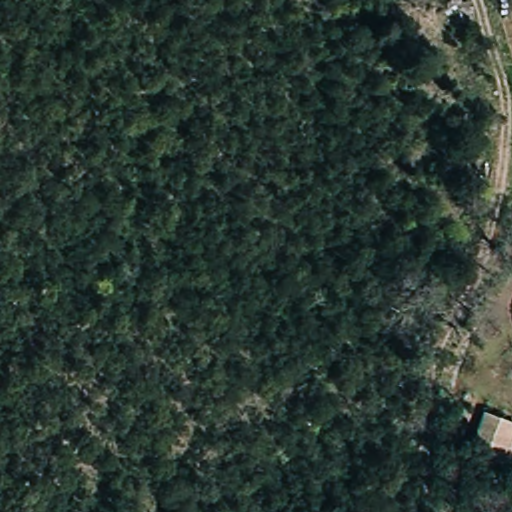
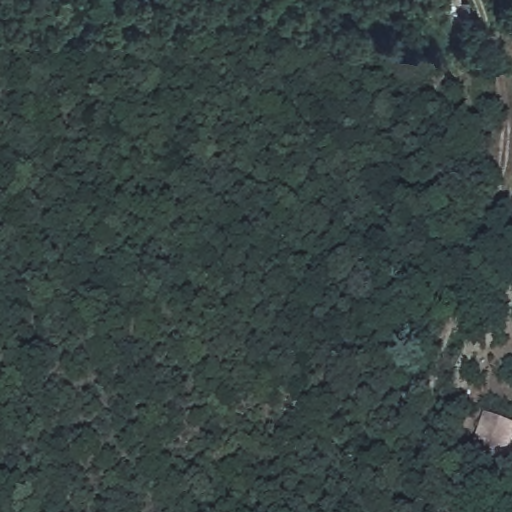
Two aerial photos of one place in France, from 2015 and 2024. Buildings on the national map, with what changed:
unchanged [(512,420),(512,446),(505,460),(470,448),(485,407),(512,420)]

